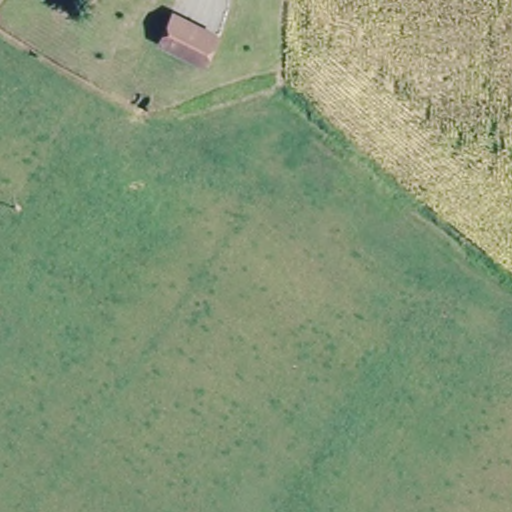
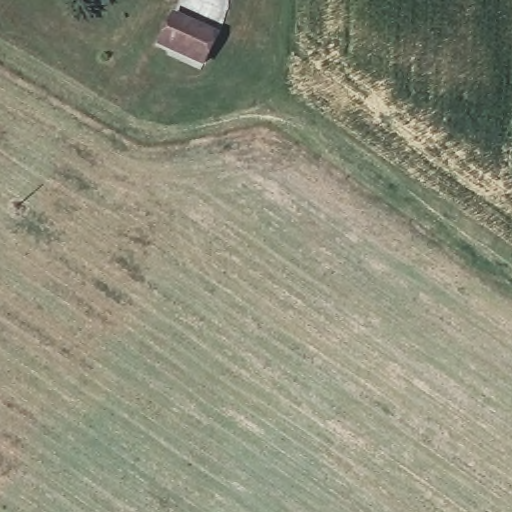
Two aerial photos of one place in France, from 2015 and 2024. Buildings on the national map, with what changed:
unchanged [(176,7),(217,32),(198,61),(159,36),(176,7)]

